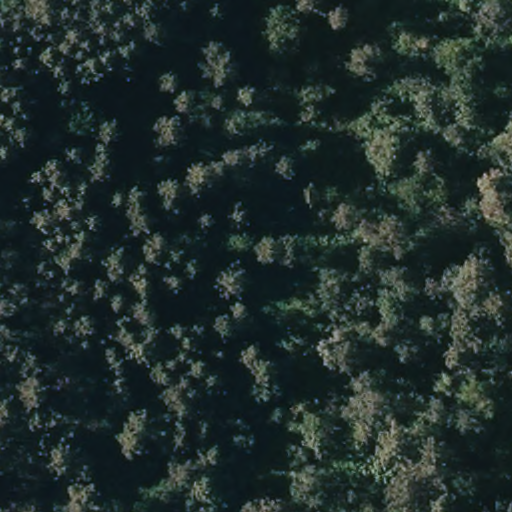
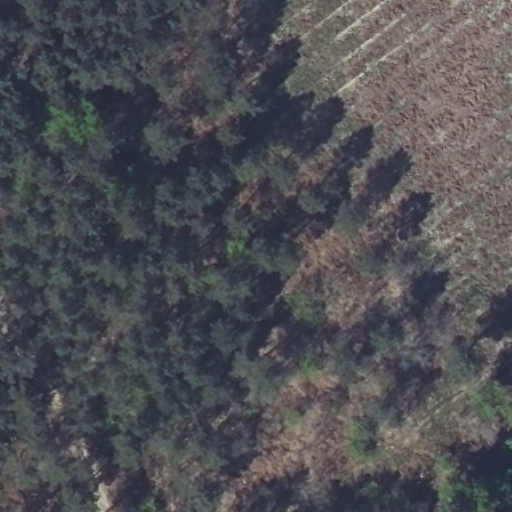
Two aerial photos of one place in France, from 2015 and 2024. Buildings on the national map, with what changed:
[]

